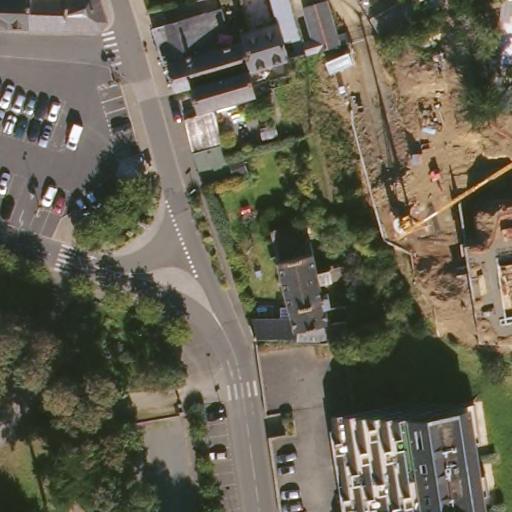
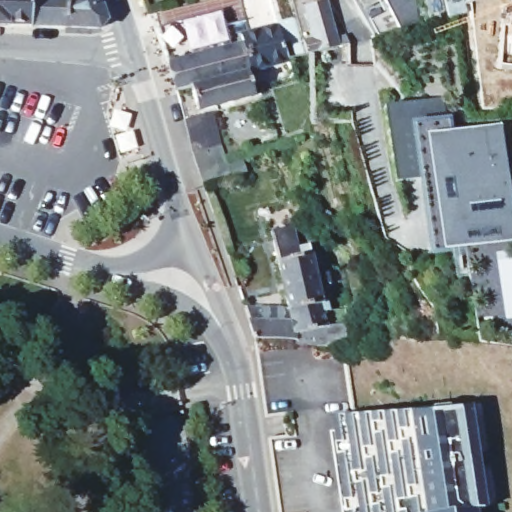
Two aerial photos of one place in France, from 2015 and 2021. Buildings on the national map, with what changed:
unchanged [(0,23),(0,0),(40,0),(39,25),(0,23)]
unchanged [(39,25),(40,0),(73,0),(71,26),(39,25)]
unchanged [(103,27),(71,26),(73,0),(106,0),(112,17),(103,27)]
unchanged [(255,71),(247,44),(245,37),(262,32),(257,12),(249,13),(247,0),(297,0),(310,46),(313,57),(298,62),(294,62),(269,70),(255,73),(255,71)]
unchanged [(403,0),(413,17),(381,27),(366,1),(368,0),(403,0)]
unchanged [(319,44),(310,10),(332,5),(342,38),(352,37),(354,47),(313,57),(310,46),(319,44)]
unchanged [(252,72),(193,88),(179,92),(169,65),(174,64),(164,27),(221,13),(227,35),(213,40),(215,53),(247,44),(255,71),(252,72)]
unchanged [(258,97),(218,107),(215,108),(212,109),(208,110),(205,111),(199,112),(193,88),(252,72),(258,97)]
new [(457,100),(462,137),(493,132),(510,245),(459,253),(447,177),(434,180),(408,184),(397,110),(457,100)]
unchanged [(234,159),(239,177),(209,186),(195,139),(190,120),(199,118),(200,118),(202,117),(207,116),(210,116),(213,114),(217,114),(220,112),(225,130),(225,131),(230,145),(234,159)]
new [(447,177),(459,253),(445,255),(434,180),(447,177)]
unchanged [(315,240),(323,274),(334,272),(337,282),(327,284),(331,303),(295,311),(281,247),(278,234),(277,230),(299,225),(299,229),(303,242),(315,240)]
unchanged [(344,304),(353,343),(300,344),(299,340),(259,340),(253,321),(288,320),(286,312),(295,311),(331,303),(344,304)]
unchanged [(35,318),(29,341),(5,332),(13,311),(35,318)]
unchanged [(333,430),(342,429),(339,412),(416,412),(476,402),(491,504),(480,507),(481,512),(346,512),(333,430)]

